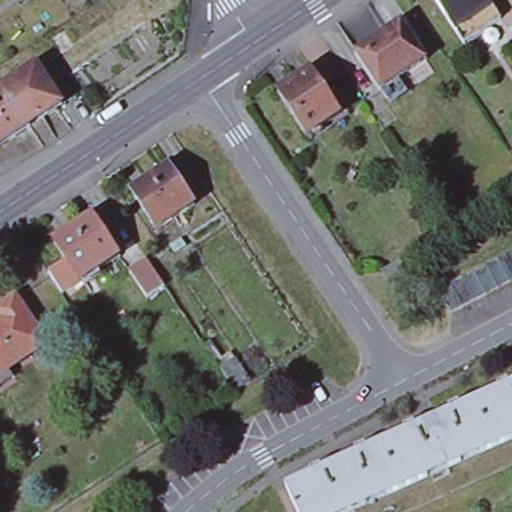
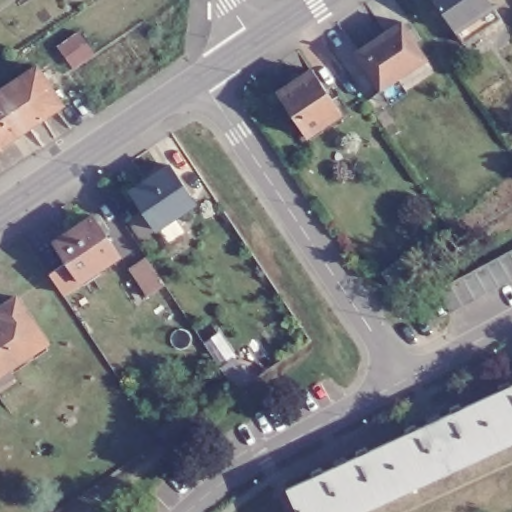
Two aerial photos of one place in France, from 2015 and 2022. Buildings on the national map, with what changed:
unchanged [(496,15),(460,39),(434,0),(486,0),(496,15)]
unchanged [(403,24),(428,62),(381,93),(356,55),(403,24)]
unchanged [(34,64),(61,104),(38,120),(35,116),(11,80),(34,64)]
unchanged [(313,71),(341,115),(307,137),(279,94),(313,71)]
unchanged [(35,116),(26,122),(28,125),(0,144),(0,87),(11,80),(35,116)]
unchanged [(169,164),(195,202),(156,229),(131,190),(169,164)]
unchanged [(88,218),(116,258),(76,285),(49,245),(88,218)]
unchanged [(439,291),(512,251),(512,279),(450,312),(439,291)]
unchanged [(409,252),(418,267),(391,286),(381,271),(409,252)]
unchanged [(156,272),(166,286),(148,296),(130,270),(148,259),(156,272)]
unchanged [(44,343),(0,374),(0,307),(13,298),(44,343)]
unchanged [(232,360),(248,383),(234,392),(219,368),(232,360)]
unchanged [(351,512),(298,512),(287,488),(512,385),(512,438),(351,512)]

